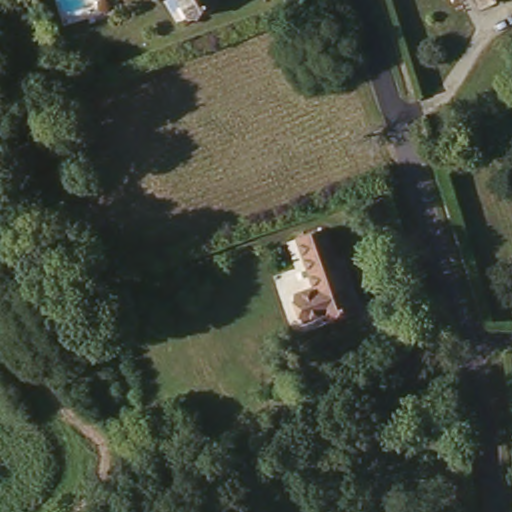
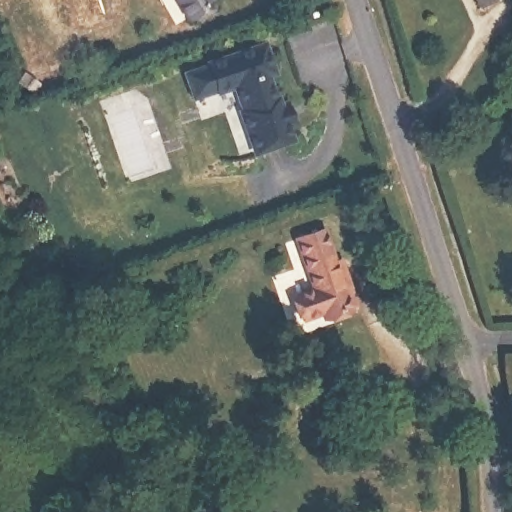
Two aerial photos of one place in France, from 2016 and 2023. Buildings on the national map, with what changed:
unchanged [(187,14),(179,0),(209,0),(187,14)]
unchanged [(483,7),(480,0),(494,0),(483,7)]
new [(268,44),(277,72),(270,75),(277,99),(280,97),(294,142),(253,156),(238,111),(240,110),(234,88),(191,104),(181,76),(205,67),(204,64),(268,44)]
unchanged [(323,227),(343,276),(348,274),(358,303),(326,316),(323,308),(304,316),(293,288),(316,282),(297,236),(323,227)]

